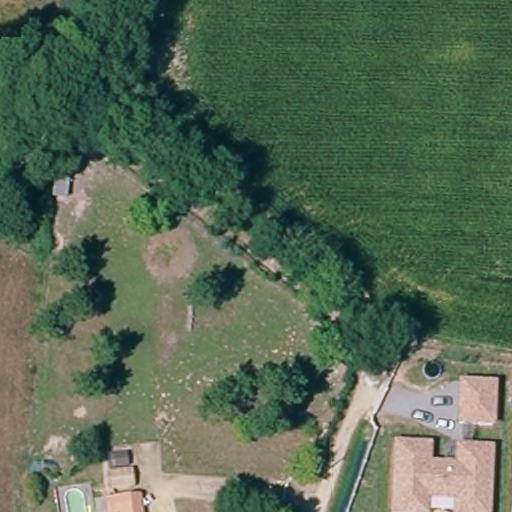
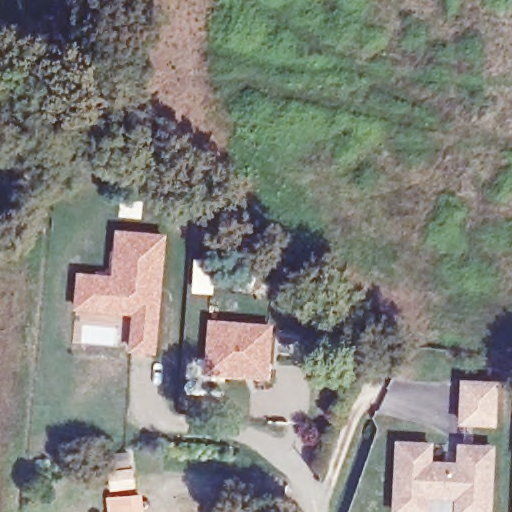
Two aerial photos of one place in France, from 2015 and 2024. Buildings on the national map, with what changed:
new [(75,270),(107,272),(112,227),(166,232),(155,354),(127,352),(129,315),(71,310),(75,270)]
new [(192,257),(215,259),(212,294),(189,292),(192,257)]
new [(206,318),(273,323),(268,379),(202,373),(206,318)]
unchanged [(499,383),(498,428),(457,427),(459,380),(499,383)]
unchanged [(433,458),(455,460),(456,442),(495,446),(493,512),(454,512),(454,501),(430,500),(429,512),(391,512),(393,441),(434,442),(433,458)]
unchanged [(115,512),(115,496),(115,492),(144,492),(144,499),(144,512),(115,512)]

